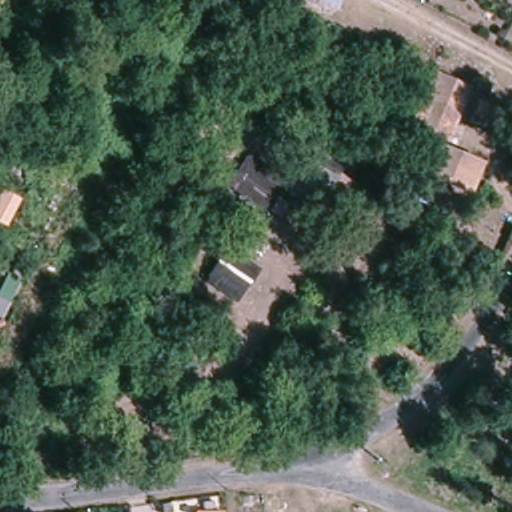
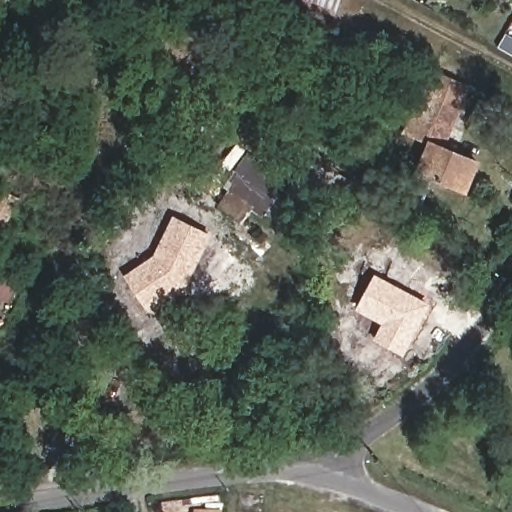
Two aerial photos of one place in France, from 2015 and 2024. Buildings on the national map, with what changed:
unchanged [(302,0),(340,0),(337,10),(302,0)]
unchanged [(432,78),(468,97),(445,145),(481,164),(465,192),(418,169),(432,141),(406,126),(432,78)]
unchanged [(331,217),(321,212),(290,193),(308,161),(340,177),(351,184),(331,217)]
unchanged [(247,167),(280,183),(275,192),(290,201),(281,220),(259,208),(256,211),(231,197),(247,167)]
new [(213,235),(186,288),(150,313),(125,275),(155,255),(172,216),(213,235)]
unchanged [(209,281),(219,263),(225,251),(258,269),(252,280),(241,298),(209,281)]
new [(375,275),(430,303),(405,357),(373,340),(381,324),(356,310),(375,275)]

